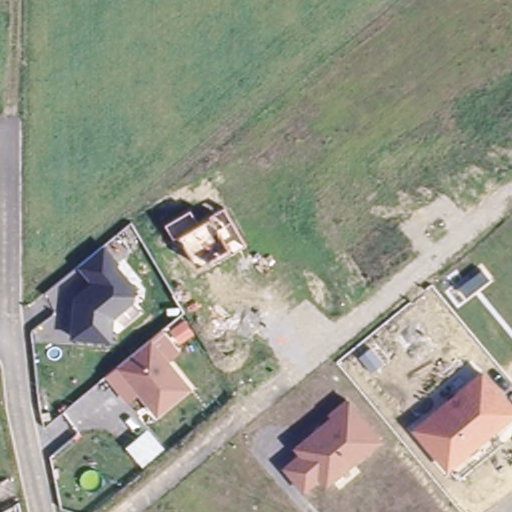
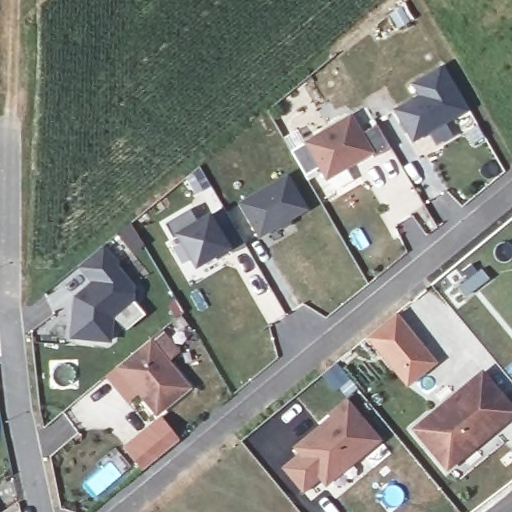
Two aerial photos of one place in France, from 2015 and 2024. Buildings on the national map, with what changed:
new [(401,7),(409,21),(398,27),(390,14),(401,7)]
new [(468,110),(414,142),(394,110),(416,95),(411,85),(443,67),(468,110)]
new [(363,132),(377,124),(391,149),(371,160),(369,156),(326,180),(304,142),(351,114),(363,132)]
new [(290,174),(309,206),(263,234),(243,202),(290,174)]
unchanged [(189,209),(196,222),(222,212),(244,248),(194,266),(163,226),(189,209)]
unchanged [(113,316),(110,340),(73,336),(76,297),(94,282),(79,264),(95,251),(102,245),(118,263),(116,265),(135,287),(133,298),(113,316)]
new [(408,382),(396,369),(368,334),(393,313),(394,316),(396,314),(423,346),(435,360),(408,382)]
unchanged [(184,346),(172,360),(192,387),(156,418),(138,395),(128,402),(104,375),(161,327),(184,346)]
unchanged [(482,369),(512,407),(512,417),(447,471),(411,429),(482,369)]
unchanged [(283,467),(298,455),(294,450),(330,417),(329,414),(346,397),(382,440),(324,487),(318,480),(303,492),(283,467)]
new [(149,429),(165,449),(144,467),(128,447),(149,429)]

